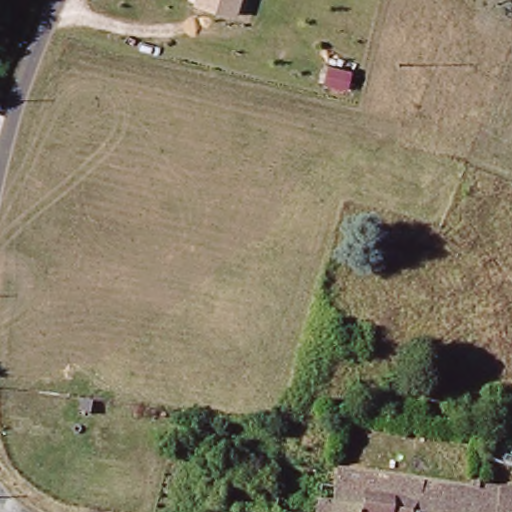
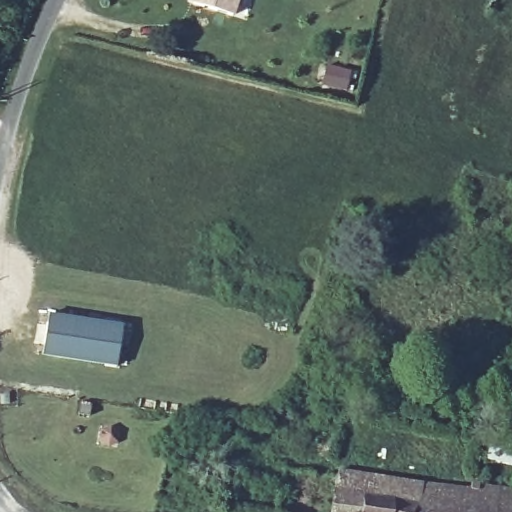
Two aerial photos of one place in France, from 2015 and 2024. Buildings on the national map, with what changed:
unchanged [(192,1),(192,0),(239,0),(234,15),(192,1)]
new [(49,311),(124,322),(117,366),(42,356),(49,311)]
unchanged [(279,485),(333,488),(337,473),(385,480),(512,494),(512,512),(277,512),(279,485)]

